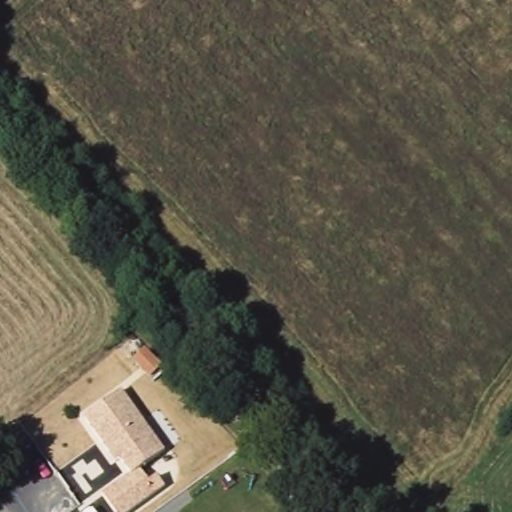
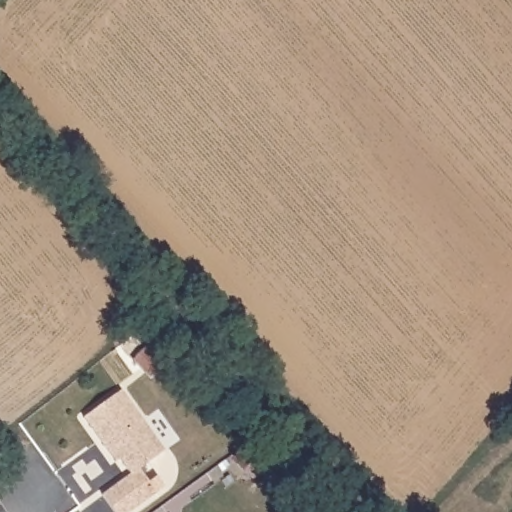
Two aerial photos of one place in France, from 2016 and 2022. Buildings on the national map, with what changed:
unchanged [(154,483),(161,477),(169,487),(135,512),(119,512),(107,495),(135,474),(117,450),(113,453),(87,418),(124,391),(169,451),(144,470),(154,483)]

